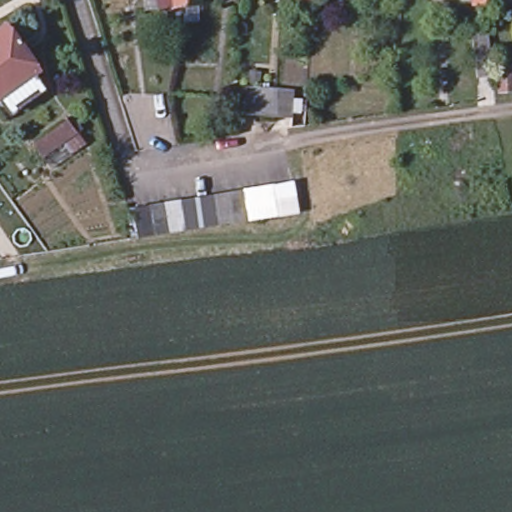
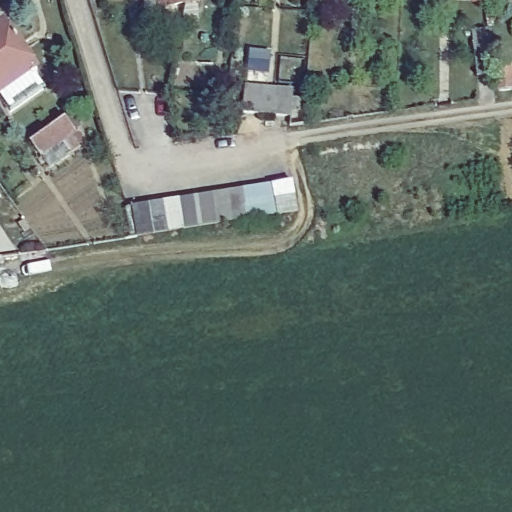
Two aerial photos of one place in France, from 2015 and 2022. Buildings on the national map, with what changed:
unchanged [(182,9),(171,10),(170,0),(193,0),(194,8),(182,9)]
unchanged [(471,4),(471,0),(495,0),(495,4),(483,4),(471,4)]
unchanged [(0,102),(0,22),(27,61),(22,65),(33,81),(2,105),(0,102)]
unchanged [(488,90),(473,90),(467,45),(482,44),(488,90)]
unchanged [(505,75),(507,99),(493,100),(491,76),(505,75)]
unchanged [(257,96),(255,122),(238,121),(240,95),(257,96)]
unchanged [(59,126),(69,140),(37,164),(27,150),(59,126)]
unchanged [(192,195),(207,194),(223,191),(238,190),(255,187),(272,185),(292,182),(295,211),(275,214),(258,216),(242,219),(227,220),(210,222),(195,225),(179,226),(162,229),(147,230),(132,232),(129,204),(144,202),(160,200),(175,198),(192,195)]

